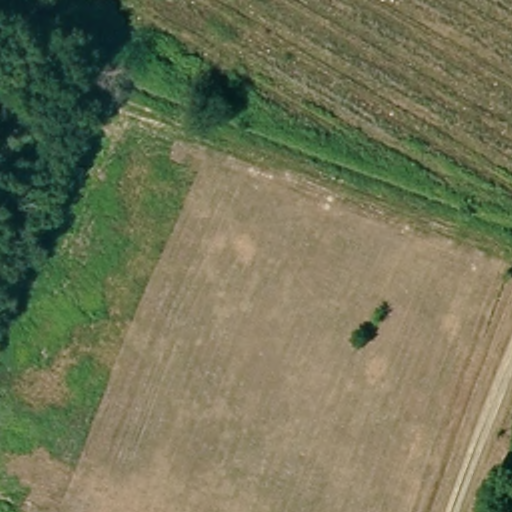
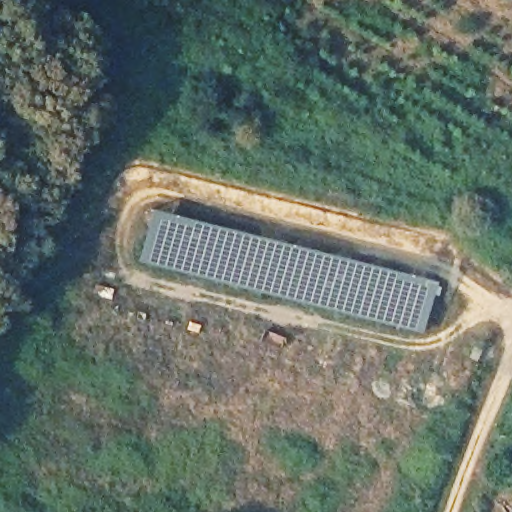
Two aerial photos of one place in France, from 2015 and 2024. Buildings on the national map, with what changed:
new [(421,335),(137,262),(151,209),(433,278),(421,335)]

